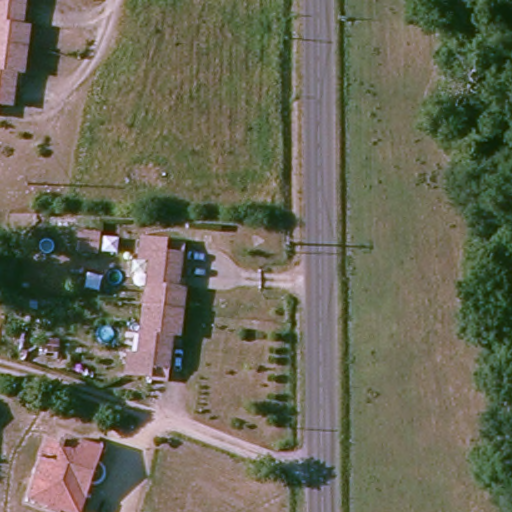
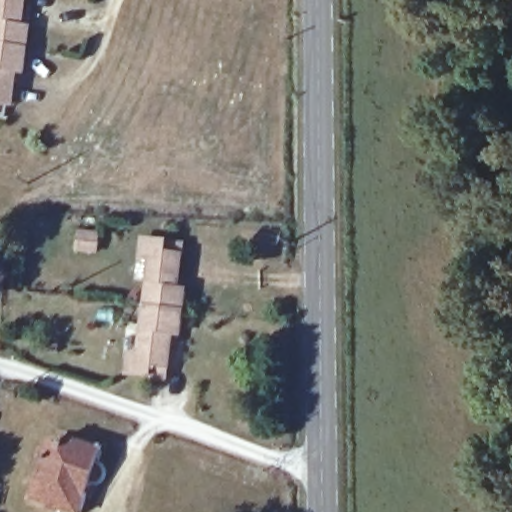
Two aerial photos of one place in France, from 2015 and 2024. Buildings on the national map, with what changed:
unchanged [(18,29),(26,31),(19,73),(12,72),(6,106),(0,105),(0,0),(23,0),(18,29)]
unchanged [(152,378),(128,375),(131,355),(141,356),(152,261),(143,259),(145,240),(169,243),(185,244),(183,255),(179,290),(189,291),(183,336),(174,335),(170,368),(168,380),(152,378)]
unchanged [(102,444),(81,510),(63,504),(61,511),(51,508),(53,501),(31,494),(49,439),(60,443),(64,432),(102,444)]

